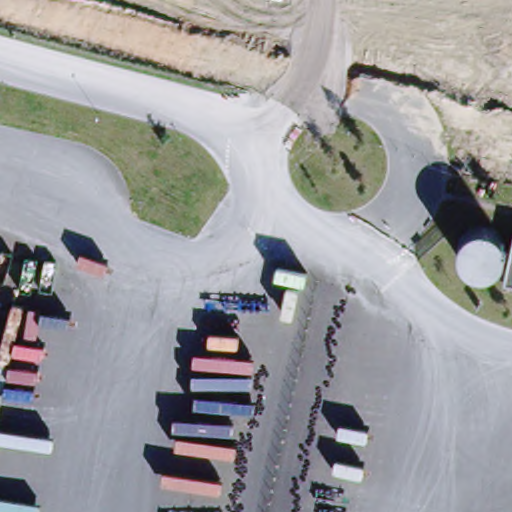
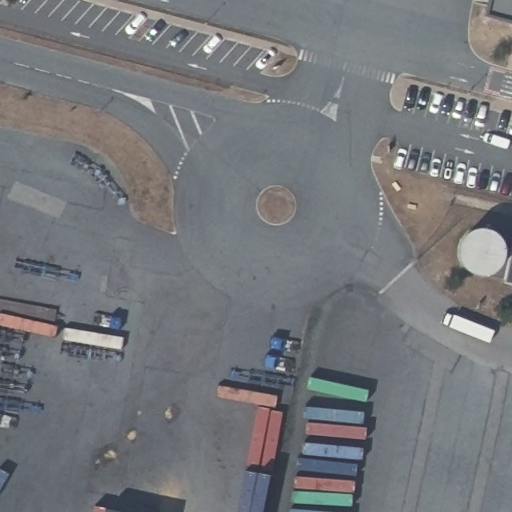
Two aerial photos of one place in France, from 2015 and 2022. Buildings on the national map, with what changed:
new [(483,11),(486,0),(512,0),(512,18),(483,11)]
unchanged [(509,278),(462,271),(469,232),(480,227),(493,227),(504,234),(509,243),(512,245),(512,279),(509,278)]

